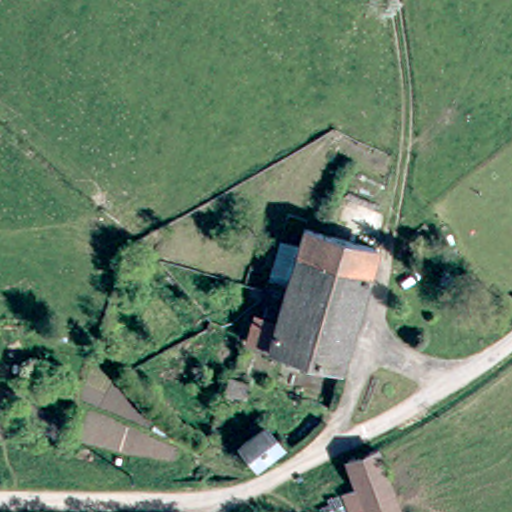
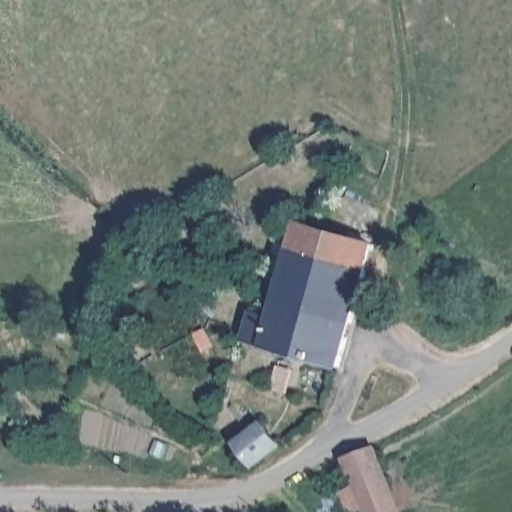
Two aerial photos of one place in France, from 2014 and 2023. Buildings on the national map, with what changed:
unchanged [(307,222),(379,242),(369,273),(299,252),(307,222)]
unchanged [(341,369),(303,358),(300,366),(291,363),(294,354),(250,342),(258,314),(263,316),(267,302),(270,291),(286,295),(298,253),(299,252),(369,273),(341,369)]
unchanged [(281,446),(255,464),(239,442),(265,425),(281,446)]
unchanged [(342,454),(369,444),(394,512),(362,512),(342,454)]

